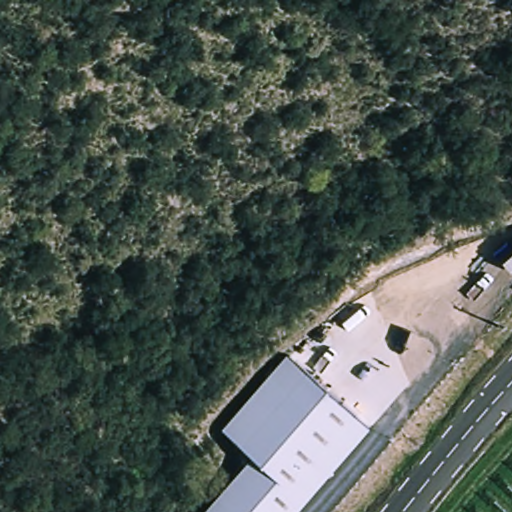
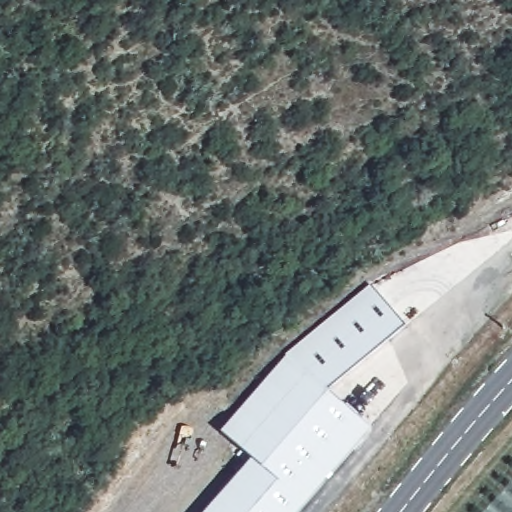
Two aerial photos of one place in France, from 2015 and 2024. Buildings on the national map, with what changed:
new [(286,354),(370,283),(405,325),(326,390),(286,354)]
unchanged [(297,512),(204,512),(251,457),(220,430),(286,355),(370,428),(297,512)]

